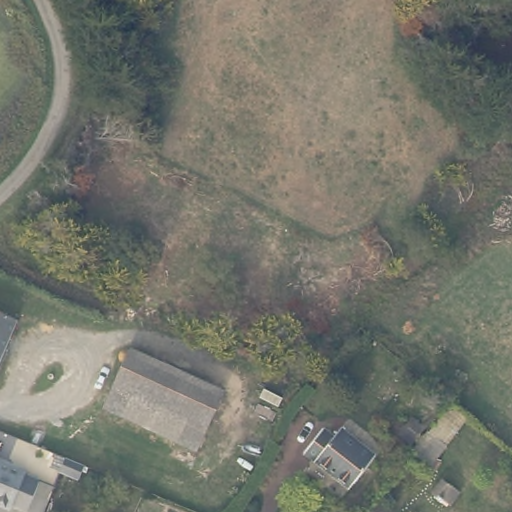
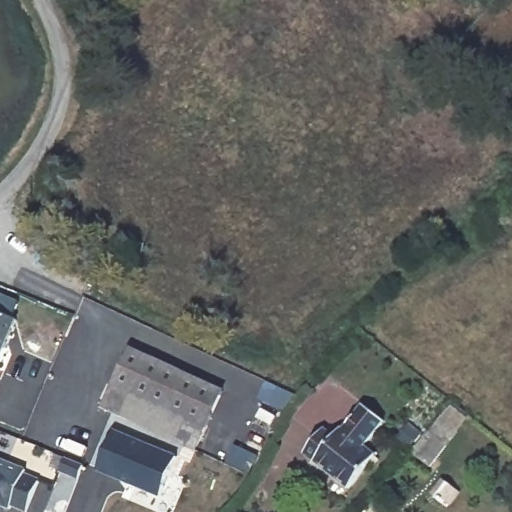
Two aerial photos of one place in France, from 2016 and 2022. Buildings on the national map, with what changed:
unchanged [(18,320),(0,362),(0,312),(18,320)]
unchanged [(222,389),(207,427),(112,385),(130,347),(222,389)]
unchanged [(207,427),(196,451),(102,409),(112,385),(207,427)]
unchanged [(348,489),(305,453),(325,428),(335,437),(342,428),(376,455),(348,489)]
new [(115,429),(176,456),(162,497),(99,470),(115,429)]
unchanged [(447,446),(431,467),(420,457),(437,436),(447,446)]
unchanged [(87,465),(81,478),(62,470),(67,457),(87,465)]
unchanged [(25,474),(40,481),(27,511),(12,506),(10,510),(0,505),(0,460),(26,471),(25,474)]
unchanged [(512,475),(511,477),(498,468),(506,460),(512,465),(512,475)]
unchanged [(430,473),(416,491),(401,479),(416,461),(430,473)]
unchanged [(455,488),(445,500),(434,491),(444,479),(455,488)]

